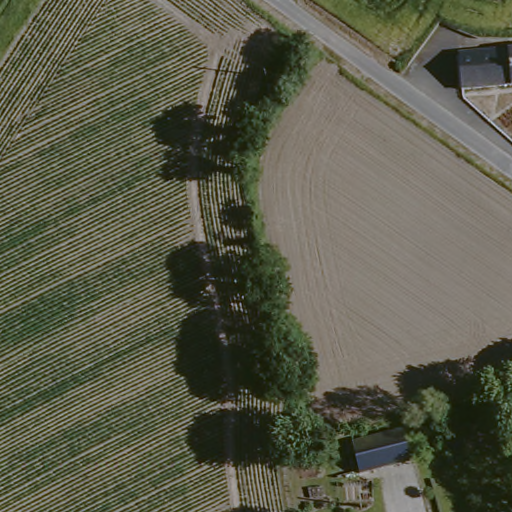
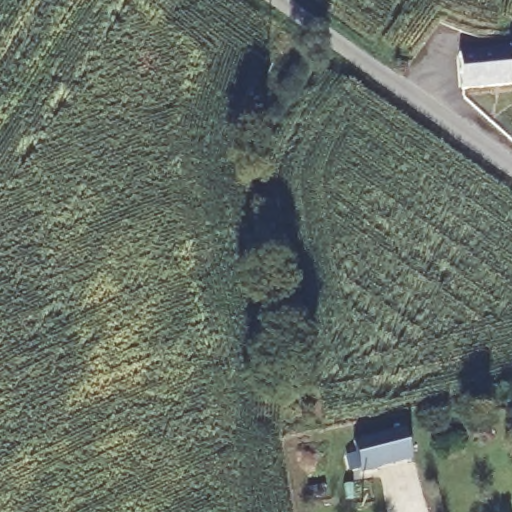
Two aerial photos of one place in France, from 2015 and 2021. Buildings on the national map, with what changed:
unchanged [(502,84),(484,83),(468,78),(459,39),(476,44),(497,47),(512,47),(512,83),(502,84)]
unchanged [(360,471),(354,440),(404,428),(411,458),(360,471)]

